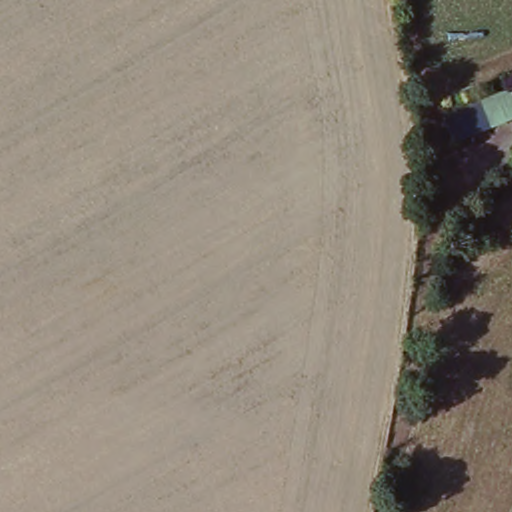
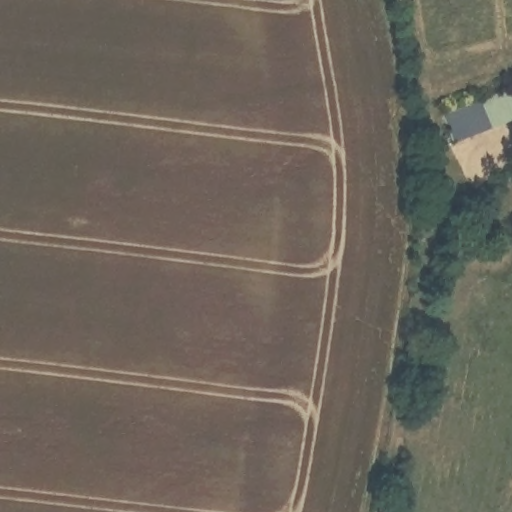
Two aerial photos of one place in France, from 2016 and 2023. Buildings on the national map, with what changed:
unchanged [(441,122),(512,91),(512,123),(453,146),(441,122)]

